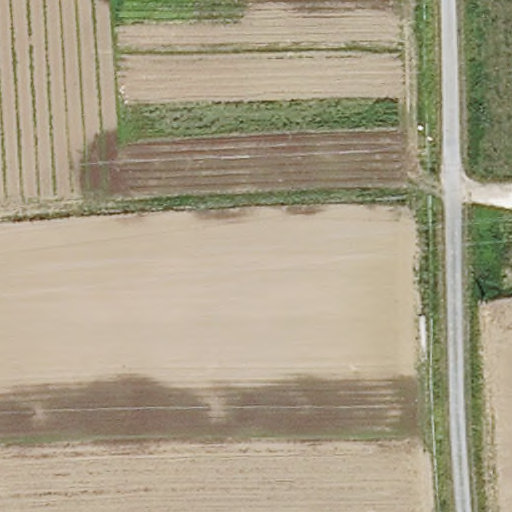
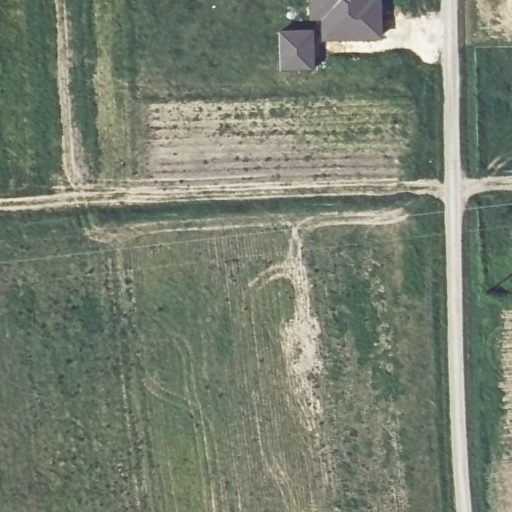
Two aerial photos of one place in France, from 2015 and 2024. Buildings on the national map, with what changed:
new [(319,40),(318,20),(308,20),(307,0),(381,0),(382,39),(319,40)]
new [(313,28),(314,70),(278,70),(277,29),(313,28)]

